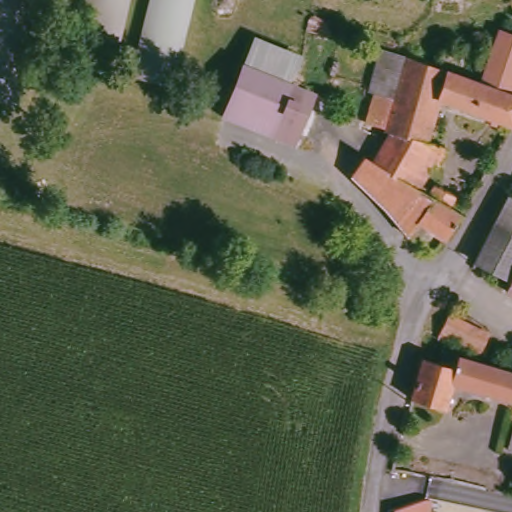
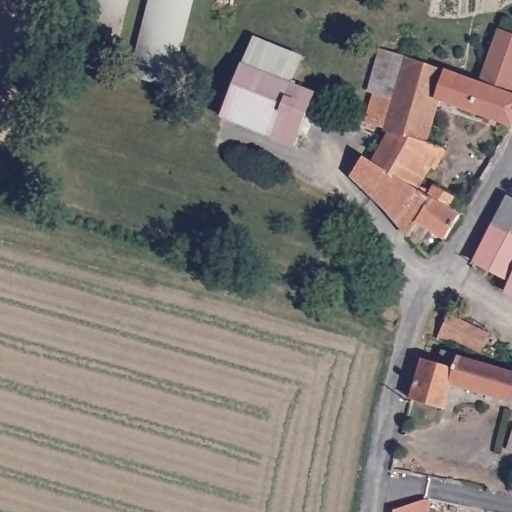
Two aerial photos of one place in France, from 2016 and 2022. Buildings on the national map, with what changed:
unchanged [(0,103),(0,0),(31,0),(20,106),(0,103)]
unchanged [(75,54),(87,0),(125,0),(111,63),(75,54)]
unchanged [(133,76),(151,0),(191,0),(171,86),(133,76)]
unchanged [(512,35),(512,95),(479,84),(498,30),(512,35)]
unchanged [(436,187),(455,197),(449,208),(460,214),(443,239),(416,223),(408,236),(395,219),(350,175),(362,156),(372,161),(389,133),(384,131),(385,128),(366,123),(374,93),(368,91),(380,49),(403,56),(479,84),(512,95),(512,125),(436,99),(425,141),(442,147),(428,172),(418,190),(430,197),(436,187)]
unchanged [(311,101),(298,137),(227,114),(241,76),(311,101)]
unchanged [(512,231),(492,222),(508,191),(512,193),(512,231)]
unchanged [(507,274),(473,258),(492,222),(512,231),(512,268),(508,275),(507,274)]
unchanged [(507,274),(508,275),(512,268),(512,290),(507,288),(507,274)]
unchanged [(488,335),(480,351),(437,336),(448,316),(488,335)]
unchanged [(445,409),(410,399),(421,360),(438,365),(442,353),(512,373),(512,402),(451,386),(445,409)]
unchanged [(512,433),(512,452),(506,450),(512,433)]
unchanged [(423,500),(428,501),(426,512),(391,512),(391,510),(423,500)]

